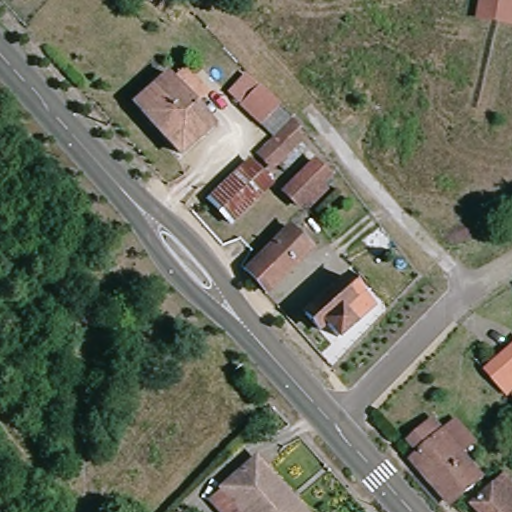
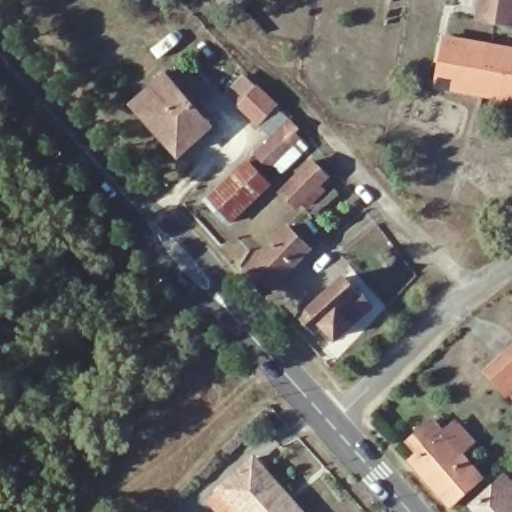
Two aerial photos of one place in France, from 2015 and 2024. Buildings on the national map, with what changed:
unchanged [(119,5),(114,0),(124,0),(119,5)]
unchanged [(474,19),(477,0),(512,0),(512,26),(474,19)]
new [(435,89),(445,35),(512,46),(512,102),(435,89)]
unchanged [(166,75),(214,127),(182,155),(135,105),(166,75)]
unchanged [(260,87),(281,106),(262,127),(240,109),(260,87)]
unchanged [(292,121),(305,135),(267,172),(253,157),(292,121)]
unchanged [(324,153),(339,169),(293,213),(278,196),(324,153)]
unchanged [(253,160),(271,180),(228,219),(213,200),(253,160)]
unchanged [(245,275),(277,241),(292,225),(311,245),(296,261),(265,295),(245,275)]
unchanged [(347,275),(375,303),(340,337),(330,325),(322,332),(306,313),(347,275)]
new [(483,370),(512,345),(512,393),(507,397),(483,370)]
demolished [(494,371),(512,355),(512,392),(494,371)]
unchanged [(409,440),(428,421),(440,434),(444,430),(452,422),(470,441),(462,450),(457,453),(480,480),(450,508),(408,463),(420,450),(409,440)]
unchanged [(255,455),(289,491),(307,512),(242,512),(219,487),(255,455)]
unchanged [(512,481),(512,512),(480,512),(472,502),(505,473),(512,481)]

